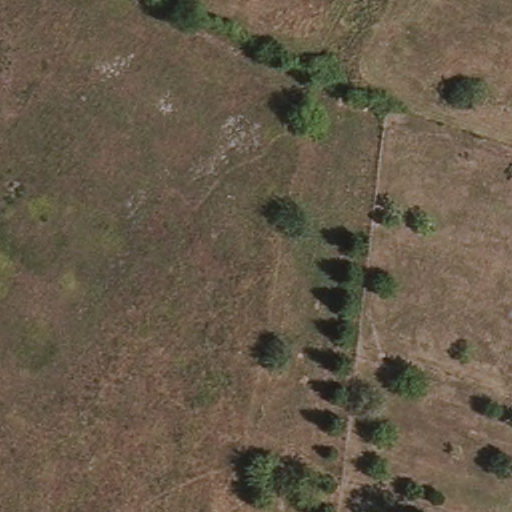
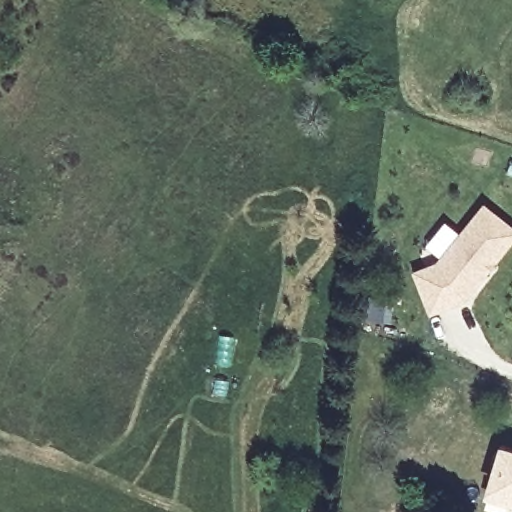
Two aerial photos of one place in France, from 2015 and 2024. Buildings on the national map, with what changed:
new [(440,265),(495,204),(512,218),(512,249),(473,299),(455,306),(440,265)]
new [(498,442),(512,446),(512,512),(490,512),(481,509),(483,502),(480,500),(498,442)]

